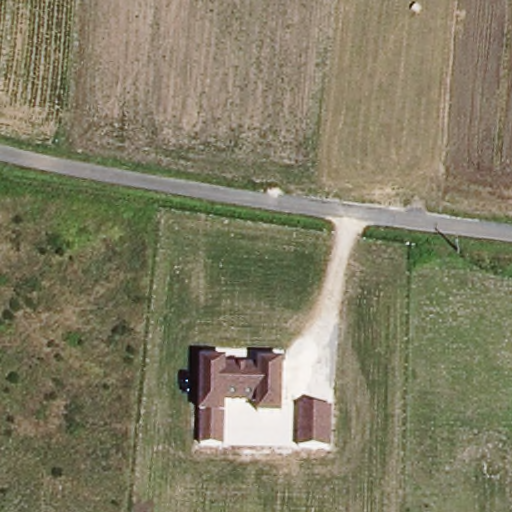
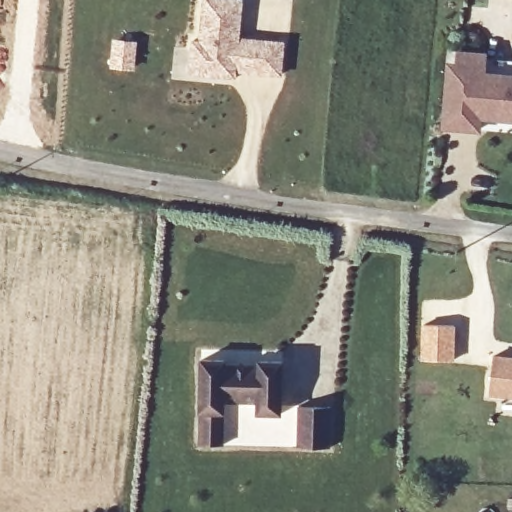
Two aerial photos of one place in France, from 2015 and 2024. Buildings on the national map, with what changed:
new [(240,38),(286,42),(282,75),(238,72),(237,80),(188,75),(191,39),(200,39),(203,0),(244,0),(240,38)]
new [(488,52),(487,71),(512,73),(512,123),(482,120),(480,133),(440,129),(446,61),(455,62),(455,50),(488,52)]
unchanged [(228,356),(228,363),(257,364),(257,359),(284,359),(282,411),(256,410),(256,402),(227,400),(225,445),(200,444),(202,357),(228,356)]
new [(512,360),(512,397),(490,394),(494,358),(512,360)]
unchanged [(330,447),(300,446),(300,405),(332,406),(330,447)]

